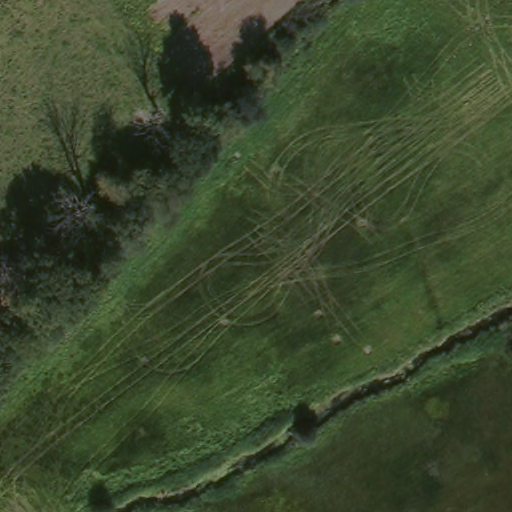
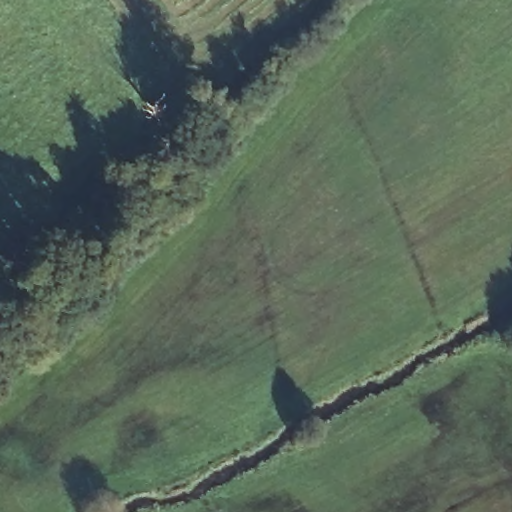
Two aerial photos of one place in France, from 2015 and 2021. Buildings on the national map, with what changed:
[]

